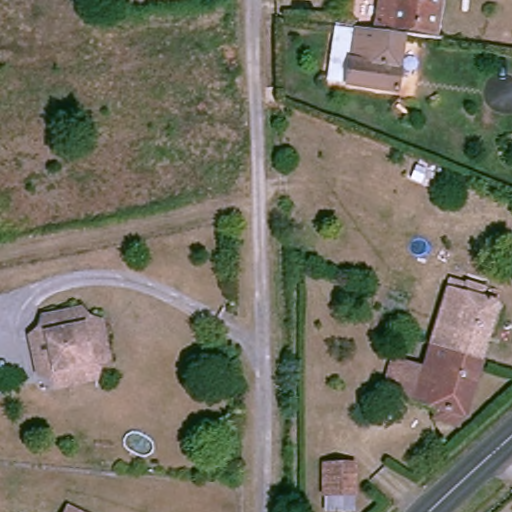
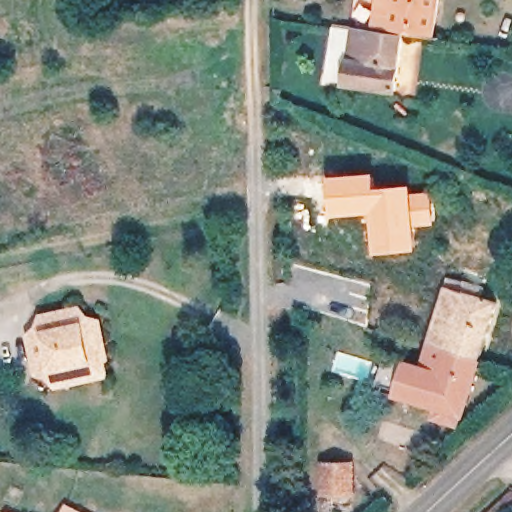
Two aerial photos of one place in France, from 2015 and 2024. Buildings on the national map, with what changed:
unchanged [(385,0),(444,0),(439,33),(395,27),(380,25),(385,0)]
unchanged [(407,39),(397,93),(348,86),(356,32),(407,39)]
new [(378,187),(413,184),(414,192),(433,191),(435,225),(418,227),(420,250),(376,255),(371,214),(335,217),(331,176),(376,172),(378,187)]
unchanged [(468,296),(471,286),(488,291),(485,301),(500,307),(481,363),(434,350),(452,292),(468,296)]
unchanged [(51,391),(48,375),(34,377),(27,340),(41,337),(39,320),(71,315),(82,313),(84,327),(98,326),(105,366),(90,367),(92,383),(51,391)]
unchanged [(435,422),(438,408),(417,402),(434,350),(481,363),(465,417),(462,416),(457,430),(435,422)]
unchanged [(353,472),(352,503),(320,503),(320,472),(353,472)]

